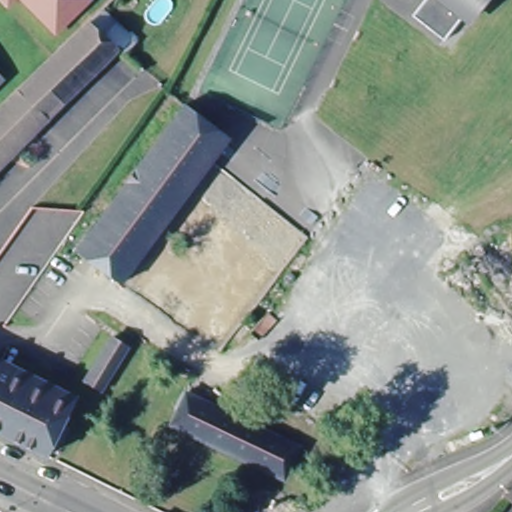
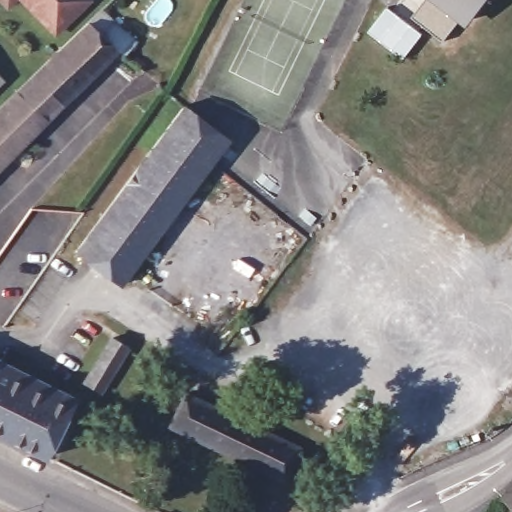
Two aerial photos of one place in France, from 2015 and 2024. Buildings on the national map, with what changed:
unchanged [(0,2),(0,0),(14,0),(6,8),(0,2)]
unchanged [(23,0),(89,0),(55,34),(23,0)]
unchanged [(112,0),(133,0),(117,16),(106,5),(112,0)]
unchanged [(462,9),(443,32),(412,7),(418,0),(476,0),(466,12),(462,9)]
new [(422,34),(403,58),(369,30),(388,6),(422,34)]
unchanged [(89,23),(100,12),(135,45),(124,56),(118,50),(0,168),(0,109),(54,56),(89,23)]
unchanged [(75,252),(185,105),(229,139),(211,164),(121,285),(75,252)]
unchanged [(113,338),(129,348),(100,393),(85,384),(113,338)]
unchanged [(46,458),(0,435),(0,369),(72,404),(46,458)]
unchanged [(186,394),(265,432),(298,448),(284,480),(170,427),(186,394)]
unchanged [(512,488),(512,504),(504,497),(512,488)]

